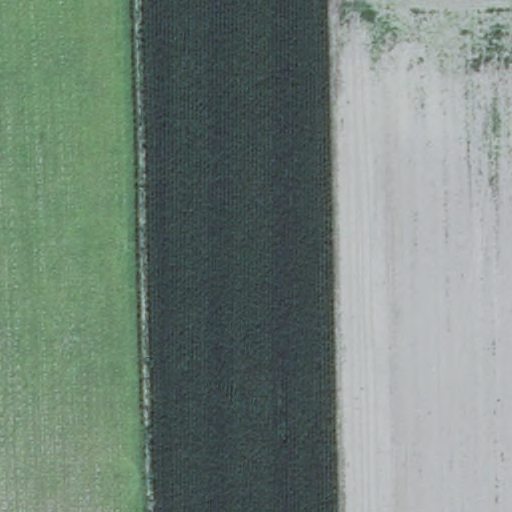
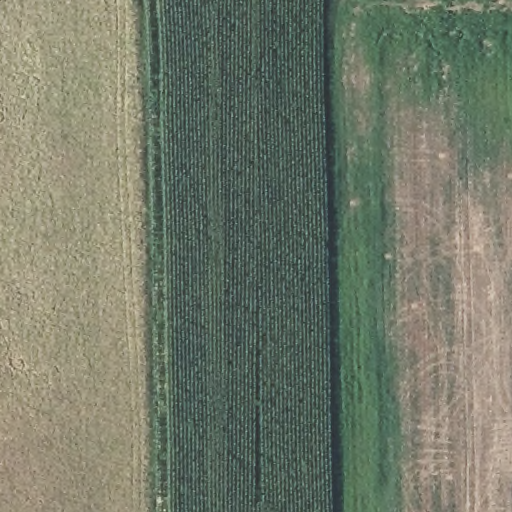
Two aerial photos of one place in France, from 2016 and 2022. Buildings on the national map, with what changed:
[]

